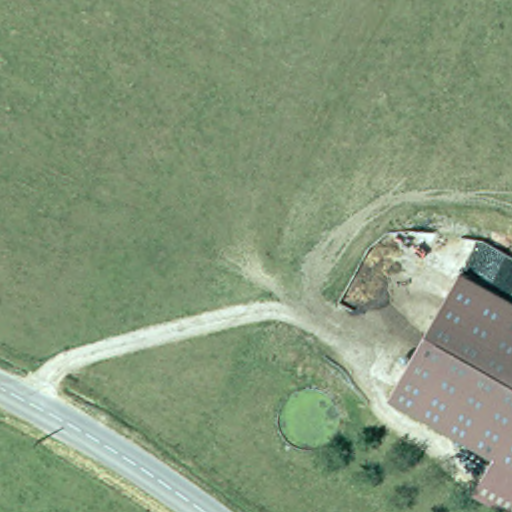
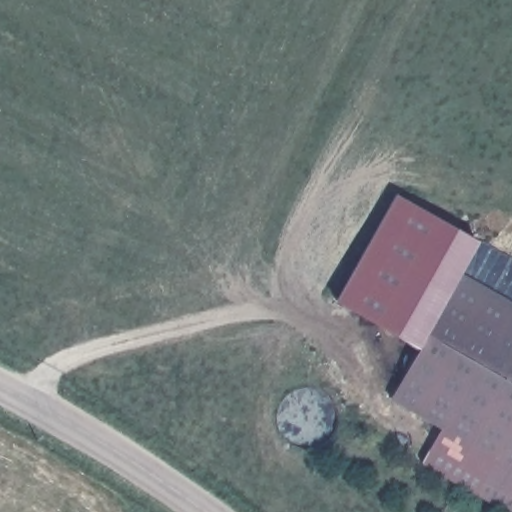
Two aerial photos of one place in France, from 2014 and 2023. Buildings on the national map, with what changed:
new [(337,300),(397,194),(473,237),(456,268),(412,344),(337,300)]
unchanged [(386,391),(456,268),(512,299),(512,462),(490,450),(386,391)]
new [(422,459),(442,423),(490,450),(470,486),(422,459)]
unchanged [(512,462),(512,509),(470,486),(490,450),(512,462)]

